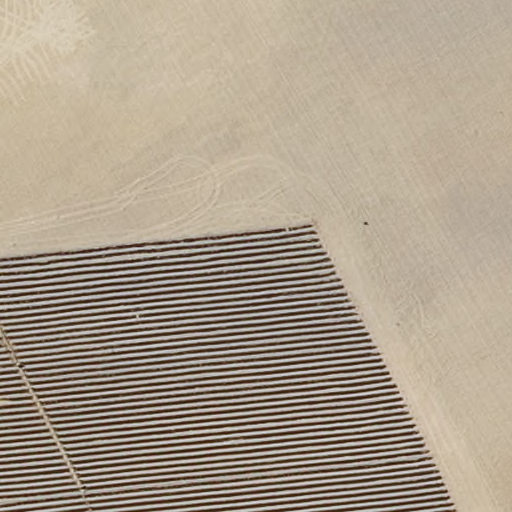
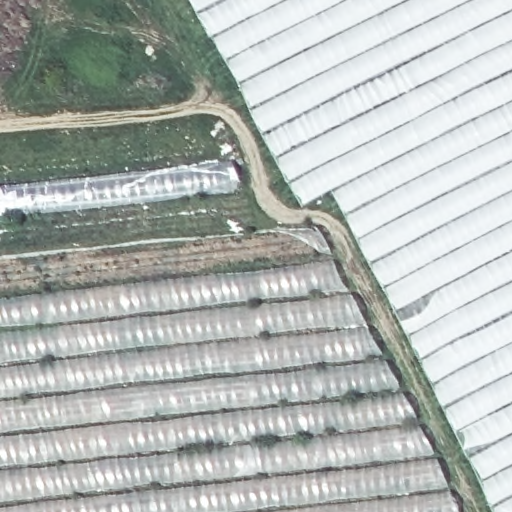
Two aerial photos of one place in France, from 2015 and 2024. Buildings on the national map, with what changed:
demolished [(505,168),(486,141),(422,183),(400,152),(340,194),(317,162),(220,225),(200,190),(132,235),(115,202),(0,278),(0,0),(512,0),(512,164),(505,168)]
new [(470,469),(329,193),(300,208),(264,144),(230,76),(188,0),(512,0),(512,512),(490,512),(470,469)]
new [(263,238),(318,230),(454,512),(0,512),(0,187),(230,164),(263,238)]

